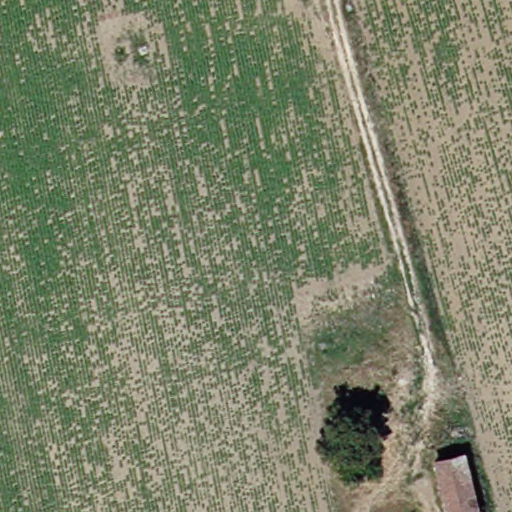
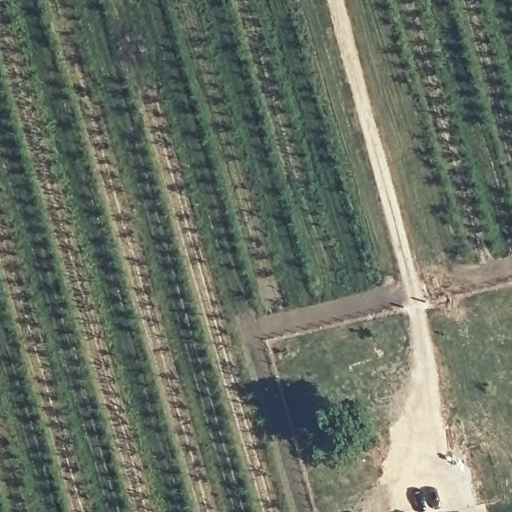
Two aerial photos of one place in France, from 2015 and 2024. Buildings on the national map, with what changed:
demolished [(483,512),(449,512),(435,464),(465,456),(483,512)]

